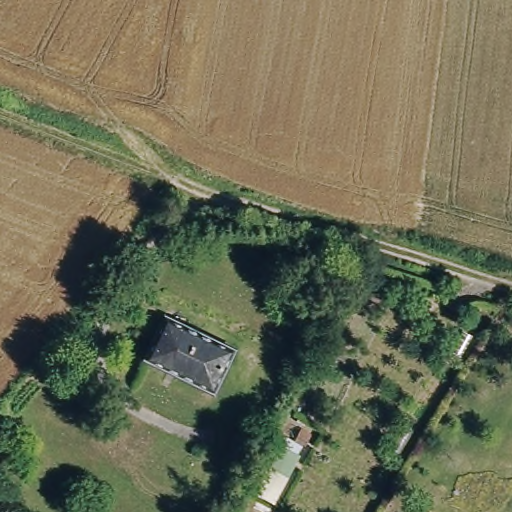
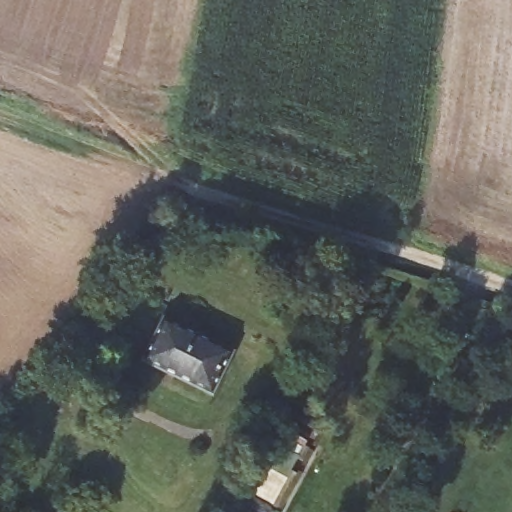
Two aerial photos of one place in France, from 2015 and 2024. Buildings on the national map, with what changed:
unchanged [(157,320),(228,339),(218,382),(146,364),(157,320)]

